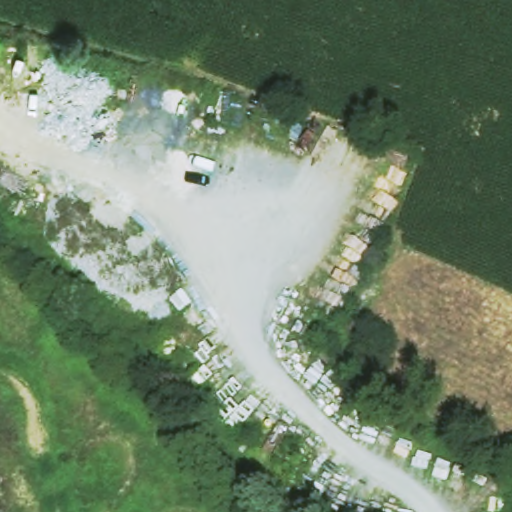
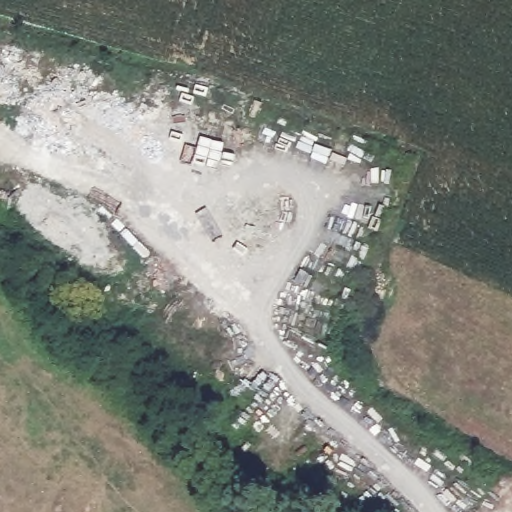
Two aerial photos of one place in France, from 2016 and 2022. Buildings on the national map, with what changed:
[]

